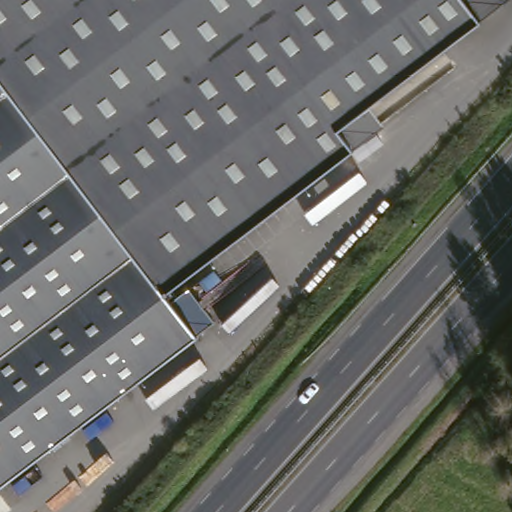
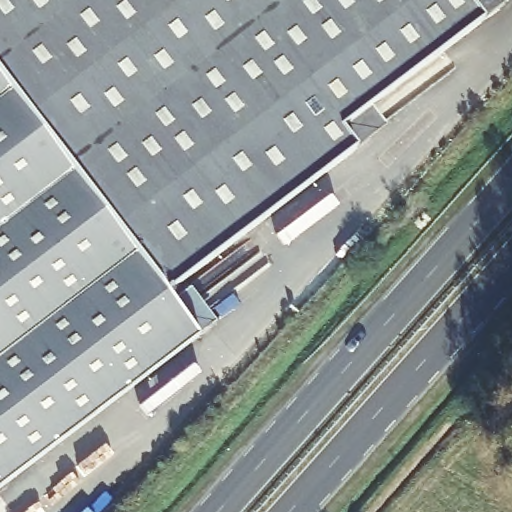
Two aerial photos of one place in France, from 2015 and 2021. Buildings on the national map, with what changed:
unchanged [(368,149),(199,279),(181,293),(214,336),(128,404),(55,458),(0,500),(0,0),(480,0),(495,19),(457,48),(370,116),(385,136),(368,149)]

